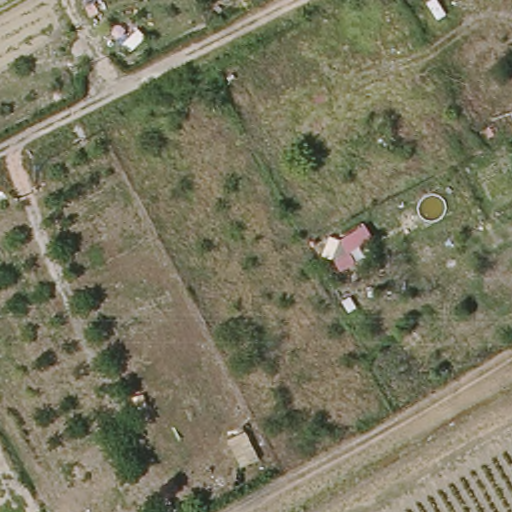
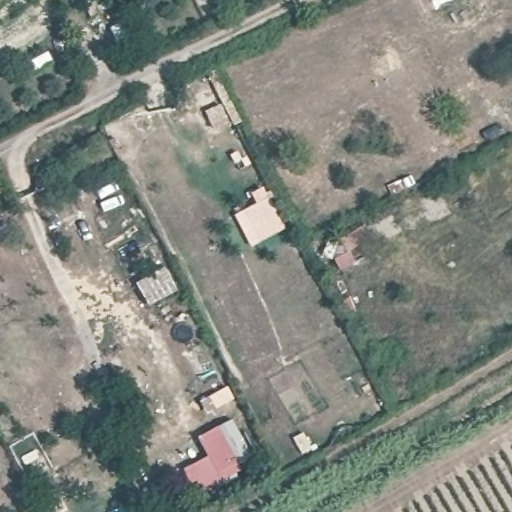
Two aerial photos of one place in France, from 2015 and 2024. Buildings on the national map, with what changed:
new [(235,215),(257,205),(252,194),(263,188),(286,229),(252,248),(235,215)]
new [(232,420),(256,463),(197,494),(184,469),(208,457),(199,438),(232,420)]

